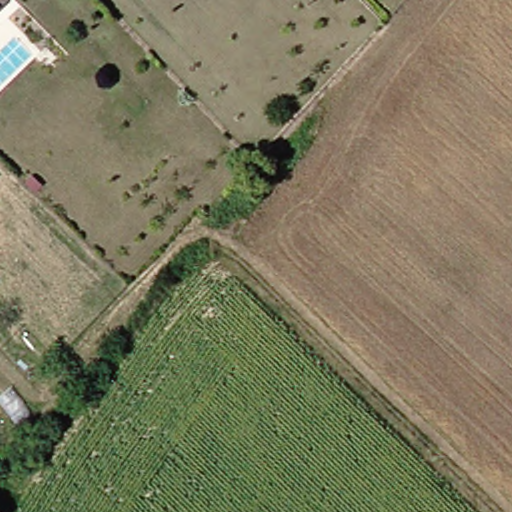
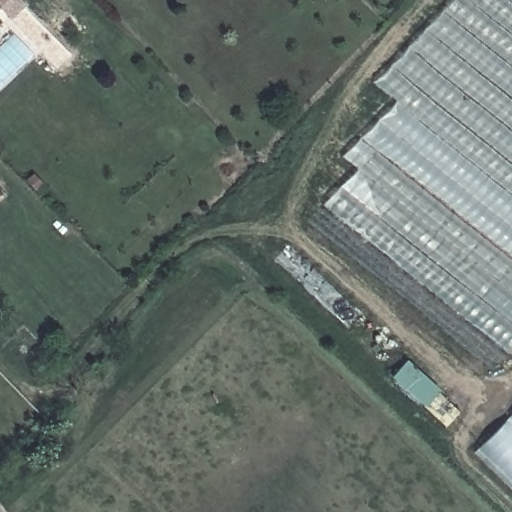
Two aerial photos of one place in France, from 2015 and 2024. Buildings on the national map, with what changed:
unchanged [(0,15),(0,0),(15,0),(0,15)]
new [(318,207),(354,170),(342,161),(394,106),(374,85),(455,0),(512,0),(512,361),(318,207)]
new [(427,408),(392,378),(406,363),(439,391),(427,408)]
new [(479,456),(512,420),(512,488),(479,456)]
unchanged [(0,512),(0,511),(1,512),(0,512)]

